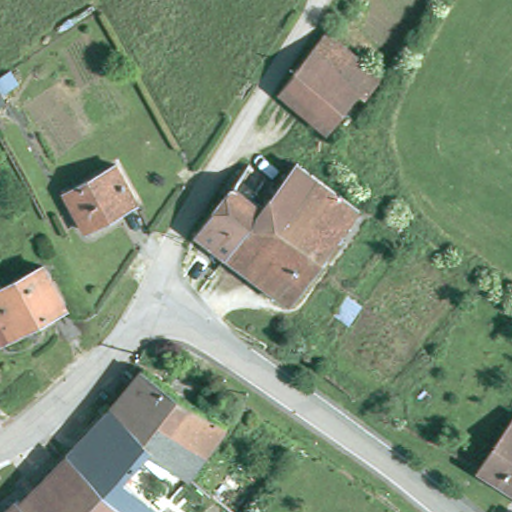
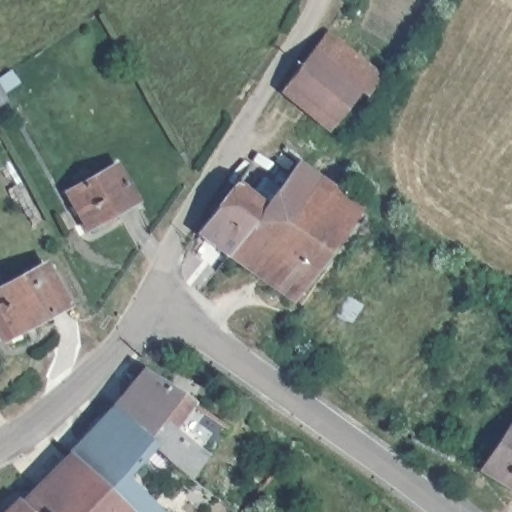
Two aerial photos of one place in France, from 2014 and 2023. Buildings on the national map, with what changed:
unchanged [(328,31),(382,72),(365,92),(360,89),(330,129),(284,91),(328,31)]
unchanged [(202,237),(257,165),(263,170),(270,162),(282,172),(291,179),(233,260),(202,237)]
unchanged [(297,307),(233,260),(291,179),(297,171),(303,162),(305,164),(332,184),(367,211),(297,307)]
unchanged [(92,229),(72,191),(121,165),(142,202),(92,229)]
unchanged [(9,339),(0,323),(0,291),(47,265),(70,303),(9,339)]
unchanged [(214,494),(157,444),(116,408),(147,372),(160,380),(166,374),(178,382),(173,390),(229,426),(207,453),(232,474),(214,494)]
unchanged [(116,408),(157,444),(127,477),(164,512),(132,512),(127,507),(70,455),(116,408)]
unchanged [(512,433),(512,489),(486,473),(512,433)]
unchanged [(123,512),(4,512),(19,497),(23,500),(70,455),(127,507),(123,512)]

